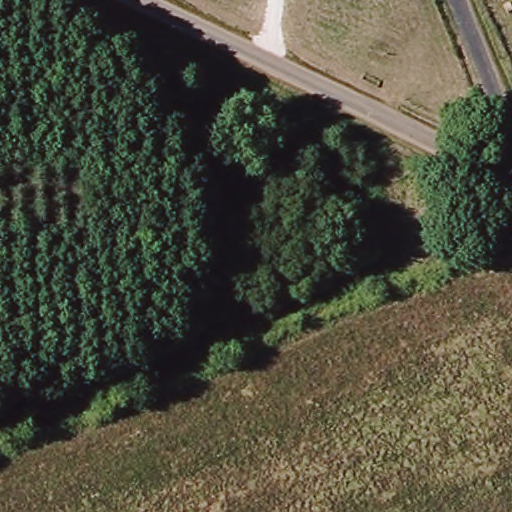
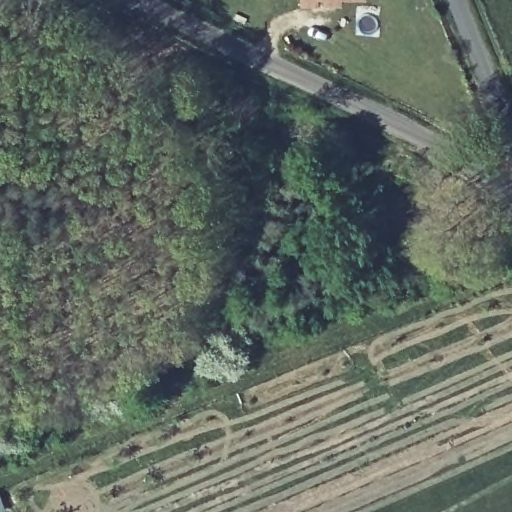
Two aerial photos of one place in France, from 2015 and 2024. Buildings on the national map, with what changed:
new [(366,0),(343,1),(343,7),(299,6),(299,0),(366,0)]

